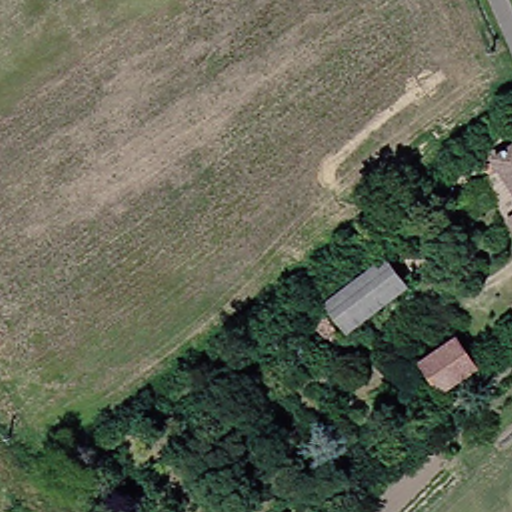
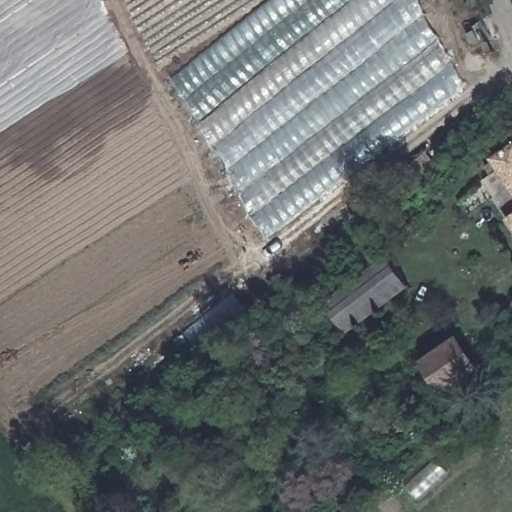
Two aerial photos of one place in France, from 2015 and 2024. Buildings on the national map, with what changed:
new [(271,0),(420,0),(424,14),(467,84),(268,238),(173,77),(271,0)]
unchanged [(484,154),(510,137),(512,139),(512,195),(484,154)]
unchanged [(499,212),(512,204),(512,232),(499,212)]
unchanged [(378,252),(400,281),(339,327),(317,298),(378,252)]
unchanged [(507,303),(512,300),(512,310),(507,303)]
new [(343,336),(348,344),(337,352),(319,327),(308,335),(301,326),(312,317),(323,310),(343,336)]
unchanged [(467,368),(433,391),(413,361),(448,338),(467,368)]

